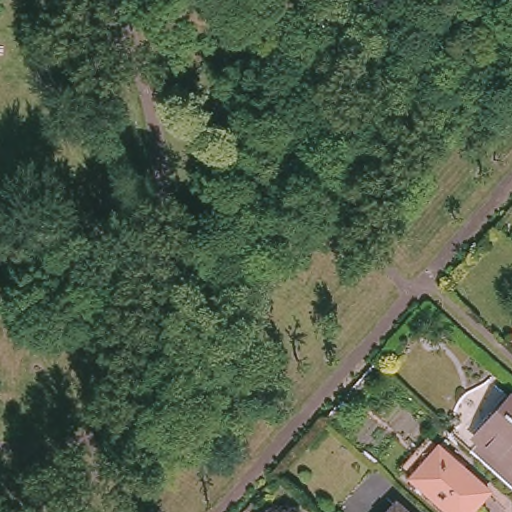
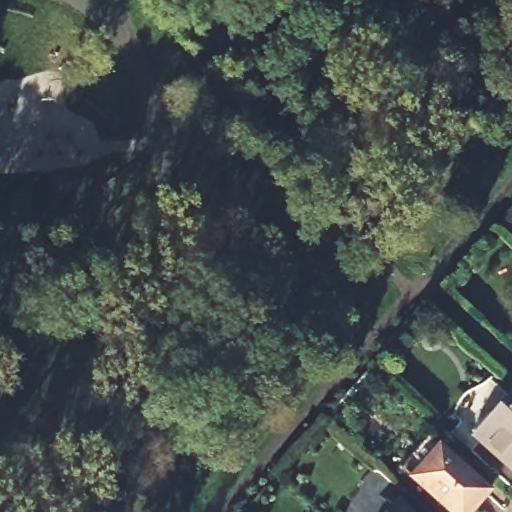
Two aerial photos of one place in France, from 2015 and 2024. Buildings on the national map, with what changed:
unchanged [(466,426),(500,388),(512,400),(512,467),(466,426)]
unchanged [(464,512),(451,512),(406,472),(434,441),(486,486),(464,512)]
unchanged [(391,512),(398,504),(406,512),(391,512)]

